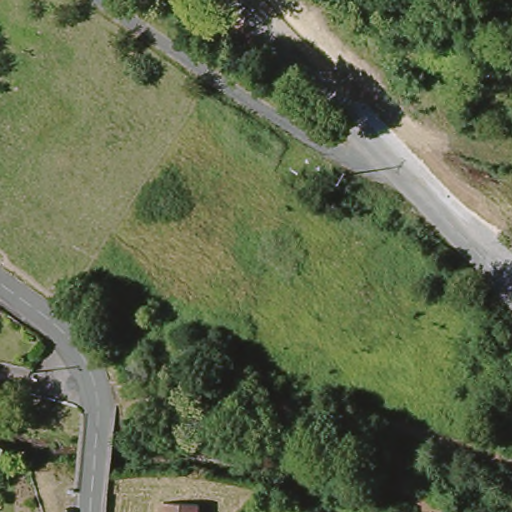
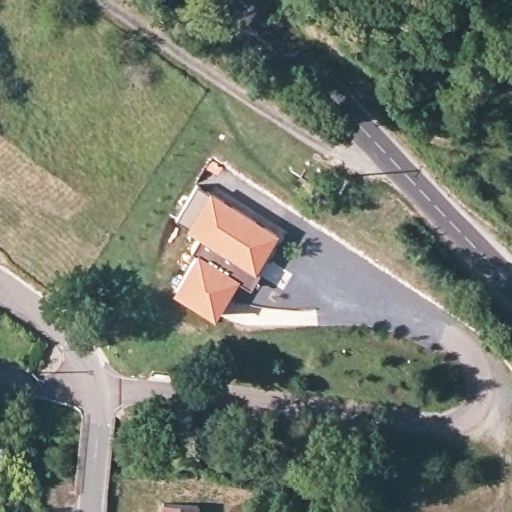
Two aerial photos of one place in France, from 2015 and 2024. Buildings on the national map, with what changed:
unchanged [(196,21),(167,2),(168,0),(204,0),(207,1),(196,21)]
new [(280,235),(258,270),(262,273),(253,288),(240,280),(215,317),(175,292),(197,254),(192,252),(202,238),(187,229),(211,194),(280,235)]
new [(5,444),(0,456),(0,443),(5,444)]
unchanged [(203,512),(166,512),(167,498),(204,499),(203,512)]

